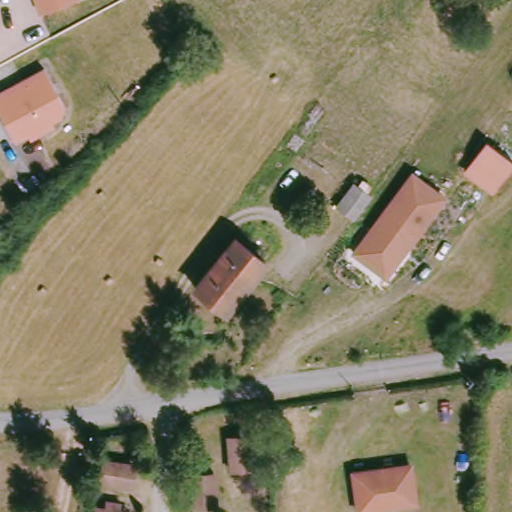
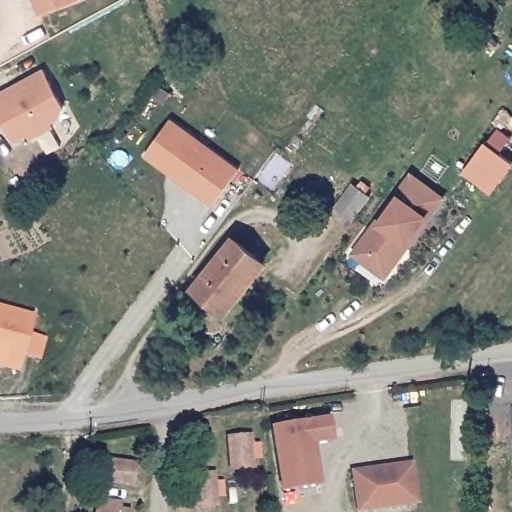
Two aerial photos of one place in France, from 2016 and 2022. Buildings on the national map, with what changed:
unchanged [(77,0),(40,14),(35,0),(77,0)]
unchanged [(60,117),(51,122),(54,126),(35,136),(33,132),(15,142),(0,116),(0,94),(44,70),(53,85),(59,96),(64,105),(60,117)]
new [(172,117),(240,168),(214,204),(145,153),(172,117)]
new [(512,162),(512,166),(492,193),(464,172),(485,141),(512,162)]
unchanged [(355,255),(360,247),(413,176),(445,200),(392,270),(386,278),(355,255)]
unchanged [(354,219),(336,205),(352,184),(370,197),(354,219)]
unchanged [(195,288),(234,240),(260,260),(265,262),(249,282),(225,312),(195,288)]
new [(17,371),(0,366),(0,309),(32,318),(17,371)]
new [(43,340),(37,360),(22,355),(27,335),(43,340)]
new [(280,491),(279,477),(272,428),(328,420),(331,442),(312,445),(315,471),(318,486),(280,491)]
unchanged [(230,472),(230,462),(227,437),(250,435),(252,460),(252,470),(230,472)]
unchanged [(133,487),(124,486),(99,483),(102,460),(127,464),(137,466),(133,487)]
unchanged [(352,473),(395,466),(410,465),(415,504),(400,506),(361,512),(357,512),(352,473)]
unchanged [(190,475),(214,473),(215,498),(216,508),(194,510),(192,500),(190,475)]
unchanged [(95,507),(105,509),(105,501),(120,504),(120,511),(123,512),(94,512),(95,507)]

